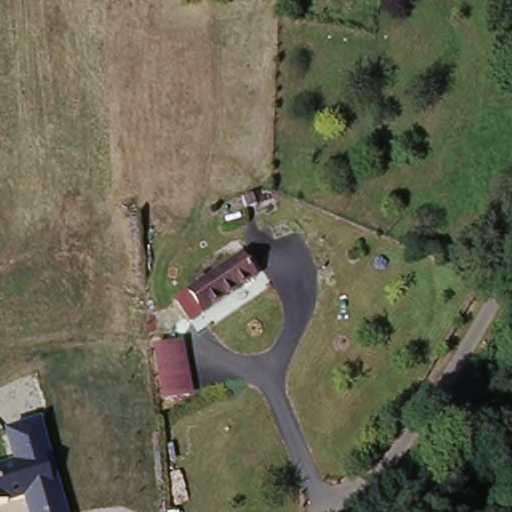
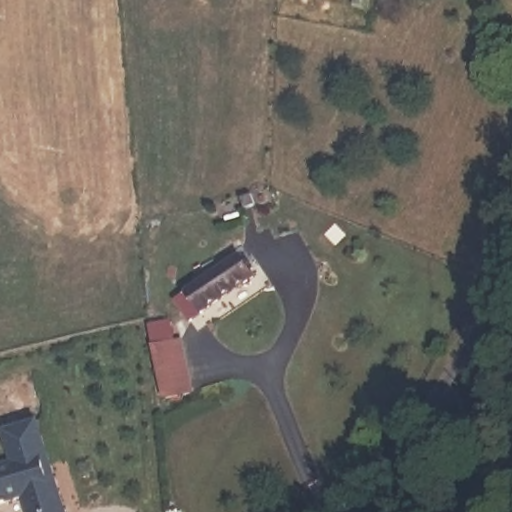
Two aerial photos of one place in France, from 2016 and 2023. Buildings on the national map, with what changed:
unchanged [(255,275),(193,329),(170,302),(184,291),(189,296),(198,287),(194,281),(202,276),(207,280),(237,254),(255,275)]
unchanged [(196,394),(166,400),(157,357),(156,347),(186,341),(187,351),(196,394)]
unchanged [(27,512),(23,500),(0,507),(0,467),(12,463),(4,433),(42,422),(68,512),(27,512)]

